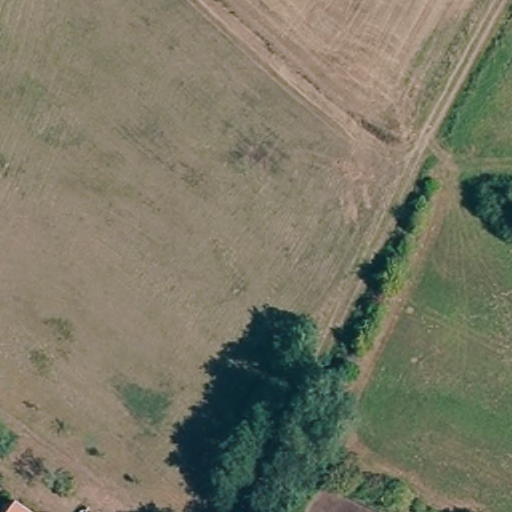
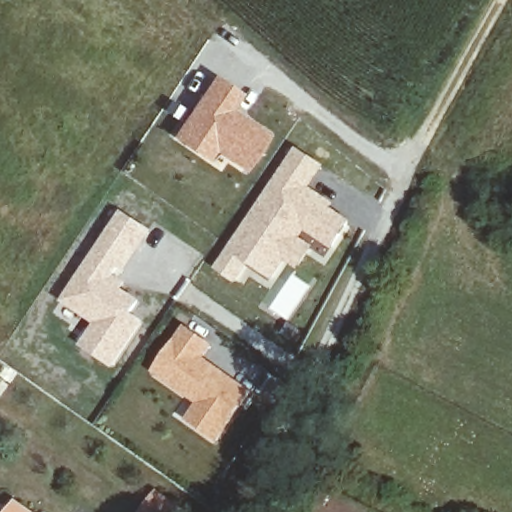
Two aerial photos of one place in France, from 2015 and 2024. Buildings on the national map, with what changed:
new [(211,73),(242,92),(232,106),(269,133),(241,171),(215,154),(209,162),(171,135),(211,73)]
new [(296,147),(324,165),(310,188),(333,204),(332,207),(348,220),(331,249),(305,232),(301,239),(311,245),(296,266),(287,260),(272,281),(249,267),(236,285),(214,268),(296,147)]
new [(121,211),(151,231),(117,283),(139,301),(132,313),(143,322),(112,369),(79,345),(92,325),(60,300),(121,211)]
new [(184,326),(212,346),(205,357),(252,392),(217,443),(184,420),(195,404),(151,373),(184,326)]
new [(176,512),(155,512),(162,502),(176,512)]
unchanged [(29,512),(13,512),(18,505),(29,512)]

